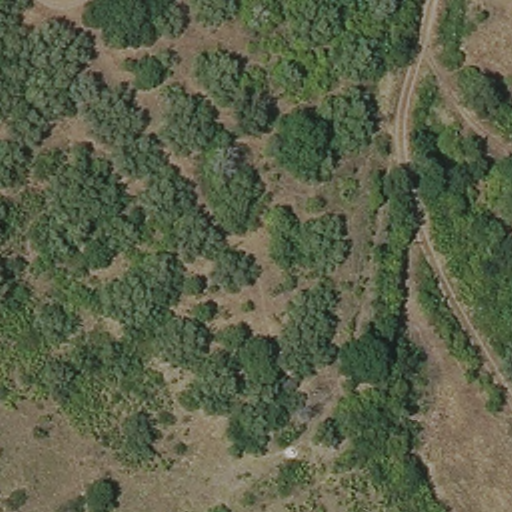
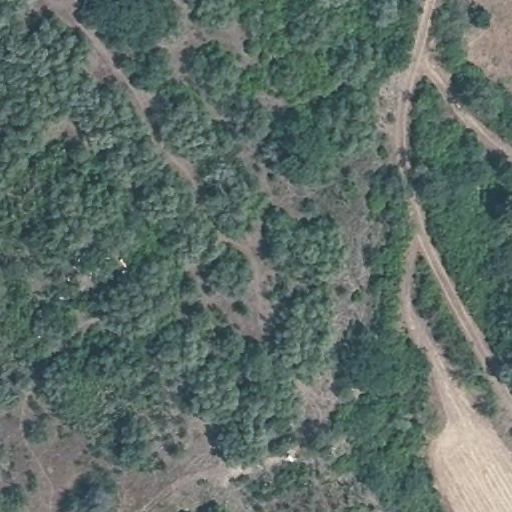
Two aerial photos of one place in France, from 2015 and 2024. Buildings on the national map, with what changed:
[]

